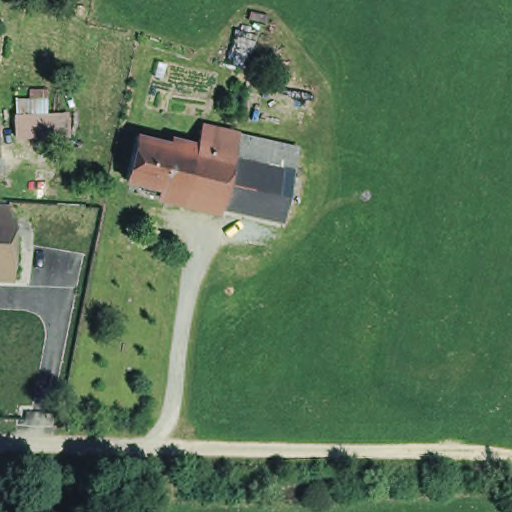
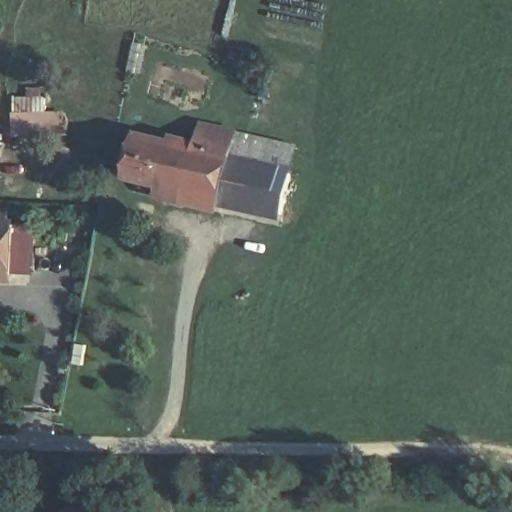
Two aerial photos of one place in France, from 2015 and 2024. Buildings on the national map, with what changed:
unchanged [(170,138),(169,131),(198,139),(202,122),(300,144),(284,217),(221,204),(219,214),(156,202),(157,187),(123,177),(134,127),(170,138)]
unchanged [(12,273),(0,273),(0,222),(15,222),(12,273)]

